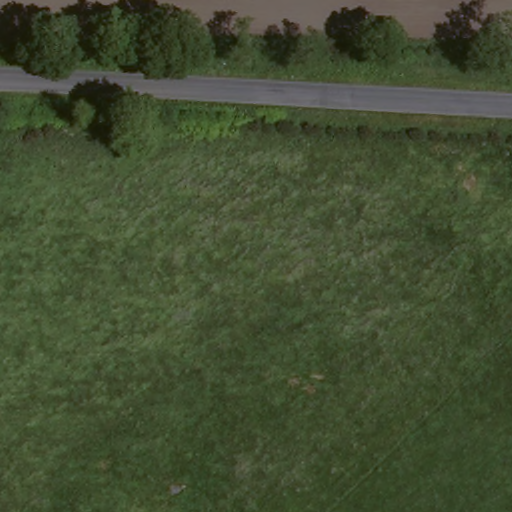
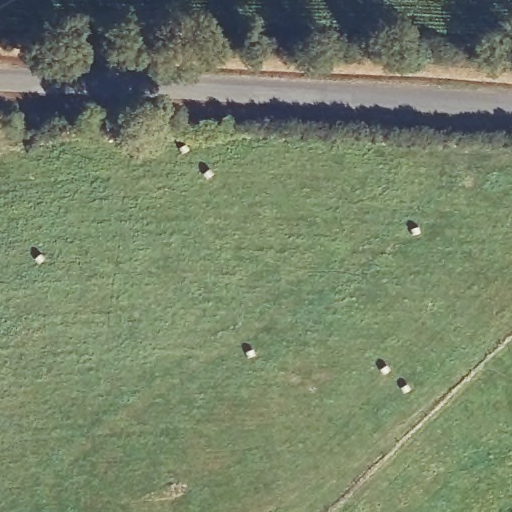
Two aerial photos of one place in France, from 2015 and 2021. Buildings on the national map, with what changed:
[]

